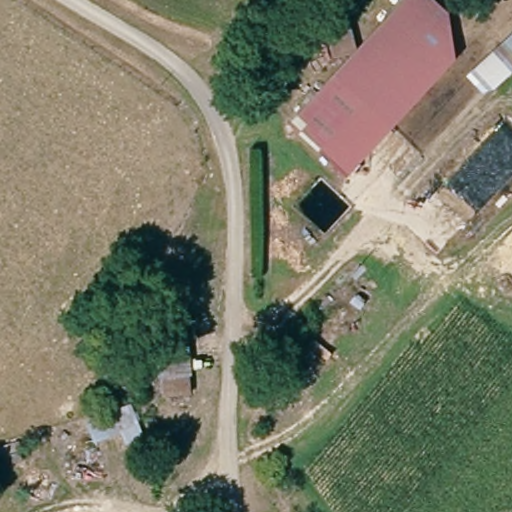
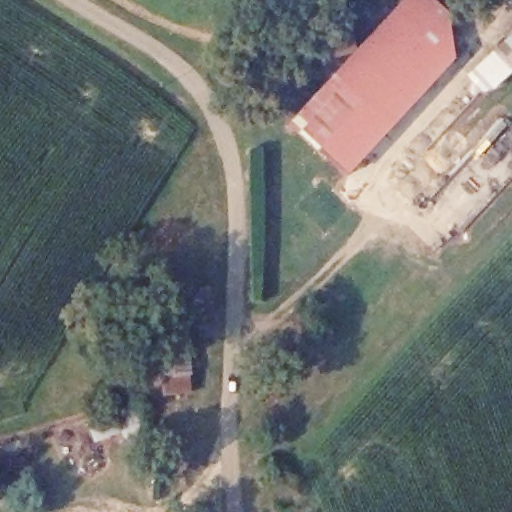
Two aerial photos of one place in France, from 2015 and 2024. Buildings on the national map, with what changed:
unchanged [(292,124),(353,58),(407,0),(430,0),(445,13),(453,61),(347,176),(292,124)]
unchanged [(512,67),(504,74),(488,78),(476,64),(512,30),(512,67)]
unchanged [(191,392),(165,394),(158,335),(143,337),(141,315),(183,312),(191,392)]

